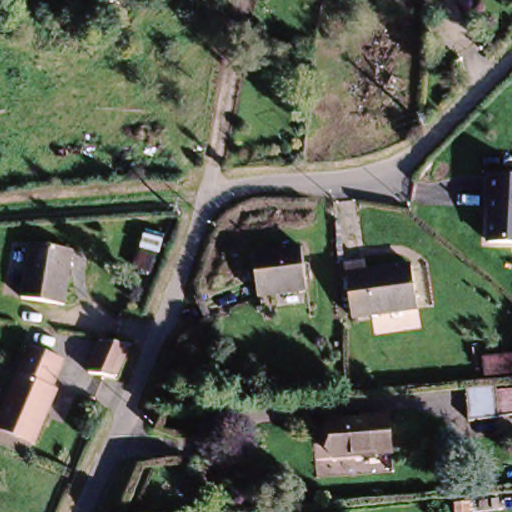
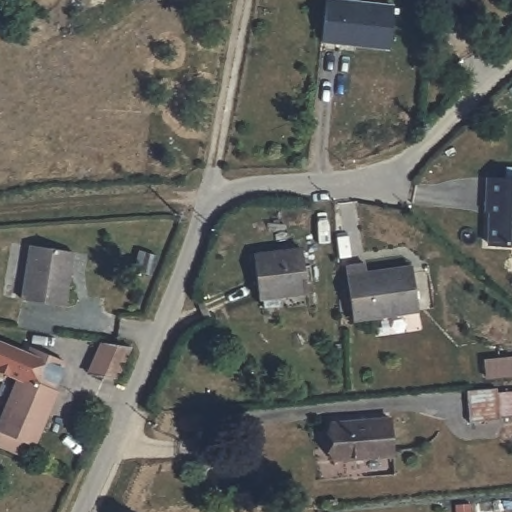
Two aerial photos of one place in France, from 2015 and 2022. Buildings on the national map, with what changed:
new [(390,51),(321,43),(327,0),(358,0),(395,4),(390,51)]
demolished [(392,99),(359,96),(362,78),(392,81),(392,99)]
unchanged [(497,213),(494,213),(495,182),(512,182),(512,247),(497,246),(497,213)]
unchanged [(153,238),(167,243),(159,264),(145,260),(153,238)]
unchanged [(68,251),(59,305),(16,298),(25,244),(68,251)]
unchanged [(306,252),(309,286),(260,290),(256,256),(306,252)]
unchanged [(375,322),(355,324),(353,323),(348,273),(371,270),(372,282),(375,322)]
unchanged [(417,278),(421,319),(375,322),(372,282),(417,278)]
unchanged [(98,345),(125,350),(113,383),(87,378),(98,345)]
unchanged [(63,362),(51,388),(62,394),(35,451),(30,464),(0,450),(0,420),(32,348),(63,362)]
unchanged [(484,379),(482,359),(512,357),(512,378),(484,379)]
unchanged [(512,390),(512,420),(466,422),(466,392),(512,390)]
unchanged [(388,422),(390,458),(336,462),(334,426),(388,422)]

